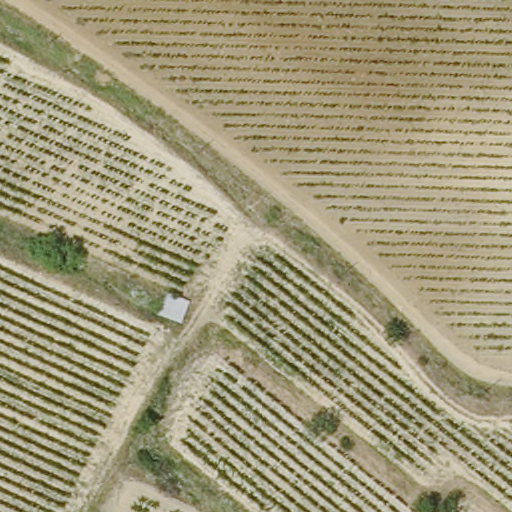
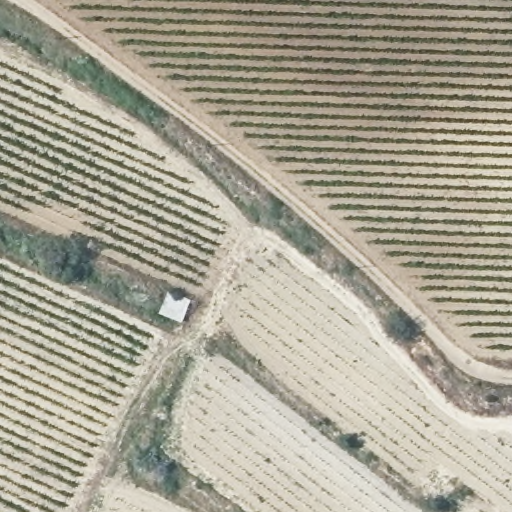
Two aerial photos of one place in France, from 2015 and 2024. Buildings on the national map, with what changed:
unchanged [(156,314),(163,299),(166,291),(191,303),(185,314),(178,324),(156,314)]

